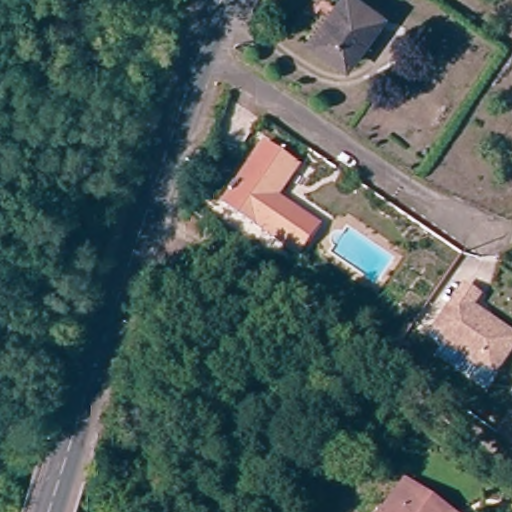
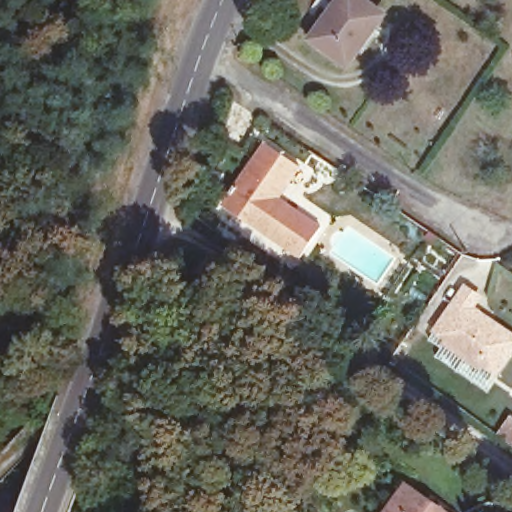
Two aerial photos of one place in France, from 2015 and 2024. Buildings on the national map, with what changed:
unchanged [(384,11),(346,63),(312,39),(340,0),(368,0),(384,11)]
unchanged [(302,256),(224,202),(266,142),(298,165),(278,194),(324,226),(302,256)]
unchanged [(450,337),(438,329),(453,306),(467,285),(480,295),(473,305),(512,331),(512,351),(498,371),(484,361),(480,367),(468,359),(447,343),(450,337)]
unchanged [(426,491),(428,488),(462,512),(387,512),(408,479),(426,491)]

